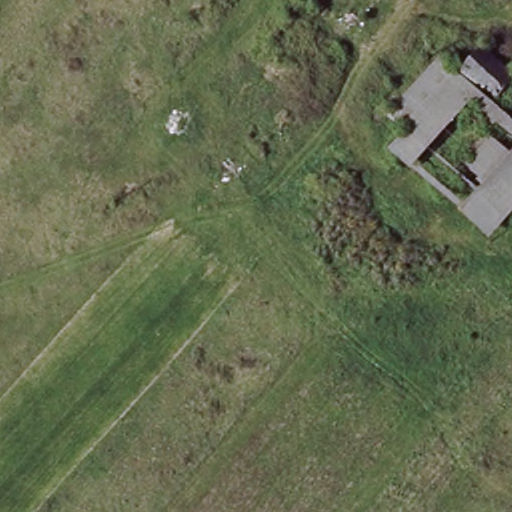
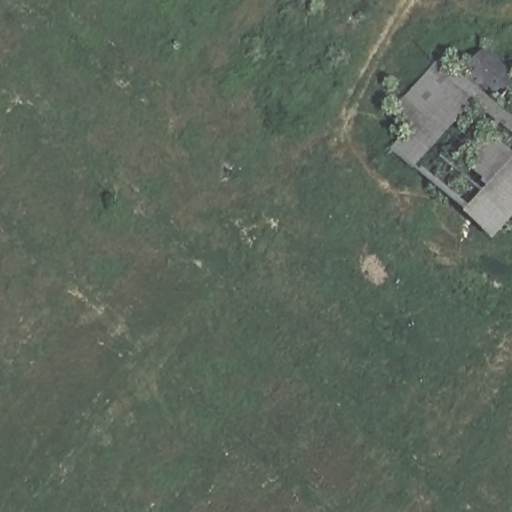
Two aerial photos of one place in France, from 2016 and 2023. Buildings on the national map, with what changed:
unchanged [(512,124),(512,224),(493,245),(414,177),(393,154),(408,137),(391,123),(437,64),(463,78),(483,53),(512,75),(512,92),(496,109),(512,124)]

